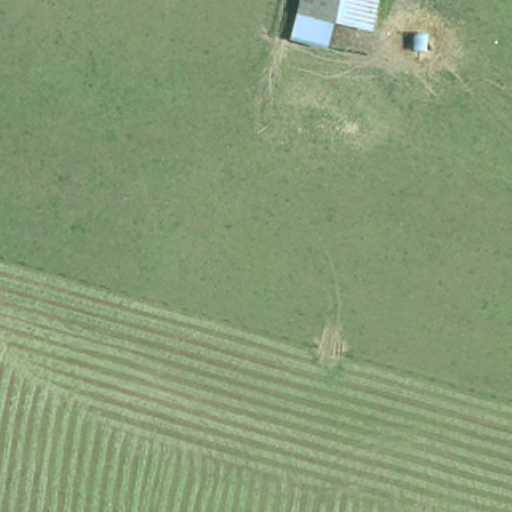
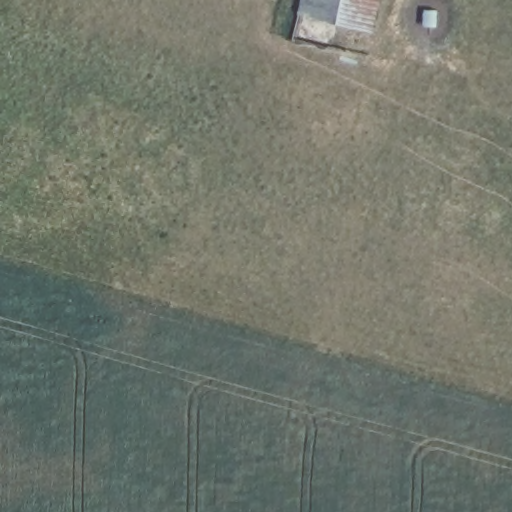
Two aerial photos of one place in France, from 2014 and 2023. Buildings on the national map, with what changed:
unchanged [(343,0),(337,24),(301,16),(305,0),(343,0)]
unchanged [(337,24),(343,0),(380,0),(373,32),(337,24)]
unchanged [(332,49),(294,43),(301,16),(337,24),(332,49)]

